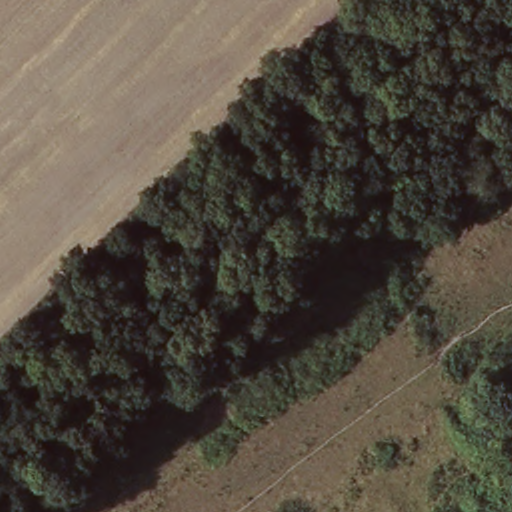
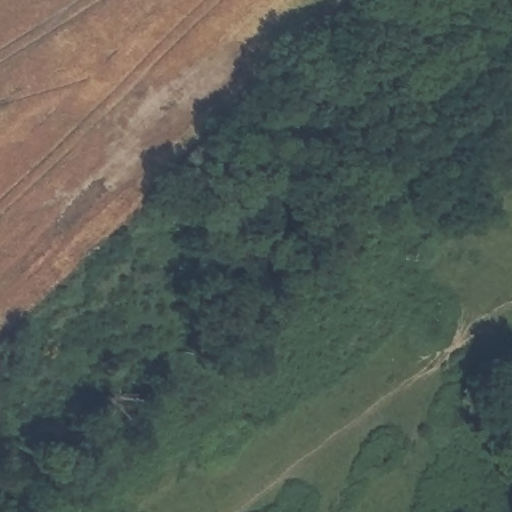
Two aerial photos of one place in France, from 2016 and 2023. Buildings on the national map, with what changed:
[]

